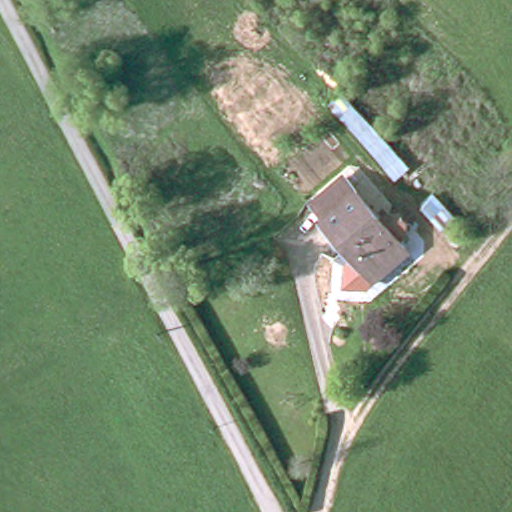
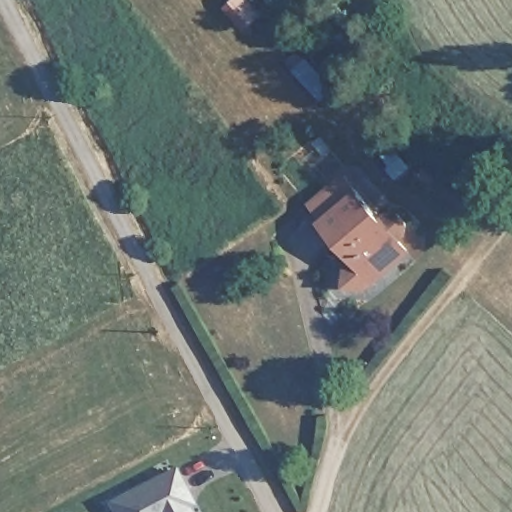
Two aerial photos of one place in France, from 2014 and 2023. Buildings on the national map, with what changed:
unchanged [(351,248),(331,224),(333,223),(318,204),(351,177),(411,251),(383,274),(376,279),(351,248)]
new [(173,468),(192,507),(189,509),(191,512),(110,512),(105,502),(173,468)]

